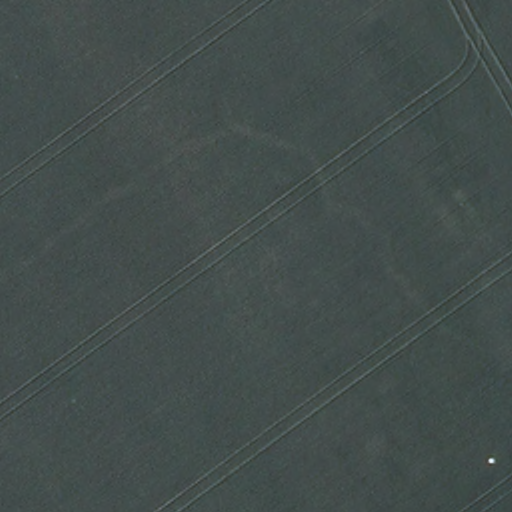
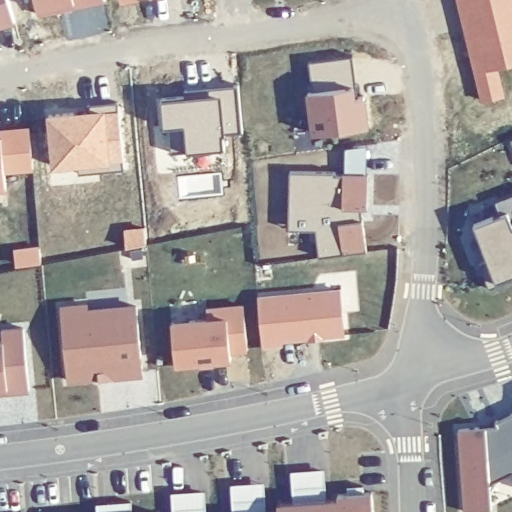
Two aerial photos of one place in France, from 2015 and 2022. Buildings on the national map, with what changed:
new [(0,25),(0,0),(12,0),(17,20),(0,25)]
new [(76,2),(63,4),(64,9),(41,14),(38,0),(107,0),(77,7),(76,2)]
new [(505,101),(479,105),(456,0),(512,0),(512,68),(498,71),(505,101)]
new [(314,90),(311,61),(355,55),(359,86),(355,86),(357,97),(366,95),(370,126),(315,133),(310,91),(314,90)]
new [(187,89),(236,85),(241,85),(245,132),(226,134),(227,147),(173,152),(171,126),(166,126),(164,98),(188,96),(187,89)]
new [(81,164),(57,166),(52,115),(77,112),(77,115),(91,113),(90,105),(121,102),(128,169),(102,171),(82,173),(81,164)]
new [(3,137),(3,131),(32,128),(35,169),(7,171),(8,186),(0,187),(0,137),(3,137)]
new [(343,174),(345,151),(366,149),(364,211),(360,211),(361,224),(365,254),(317,258),(314,233),(287,232),(290,174),(343,174)]
new [(482,263),(490,260),(477,223),(503,211),(501,203),(512,199),(512,281),(492,287),(482,263)]
new [(143,229),(143,248),(126,251),(125,232),(143,229)]
new [(38,247),(40,266),(14,270),(14,251),(38,247)]
new [(261,297),(342,291),(346,333),(283,338),(283,342),(264,344),(261,297)]
new [(62,305),(89,303),(89,308),(139,304),(145,373),(70,379),(62,305)]
new [(209,317),(208,307),(246,304),(249,349),(232,350),(232,358),(176,362),(173,321),(209,317)]
new [(5,339),(4,329),(26,328),(32,389),(10,390),(9,388),(0,388),(0,340),(5,339)]
new [(495,509),(467,511),(460,430),(499,425),(497,421),(512,414),(512,474),(494,482),(495,509)]
new [(233,482),(267,480),(269,511),(281,511),(280,502),(296,500),(294,469),(327,467),(329,498),(340,498),(340,494),(350,493),(350,486),(366,485),(366,492),(375,492),(376,512),(235,512),(233,482)]
new [(174,495),(208,493),(209,512),(175,512),(174,495)]
new [(99,506),(134,504),(135,512),(99,512),(99,506)]

